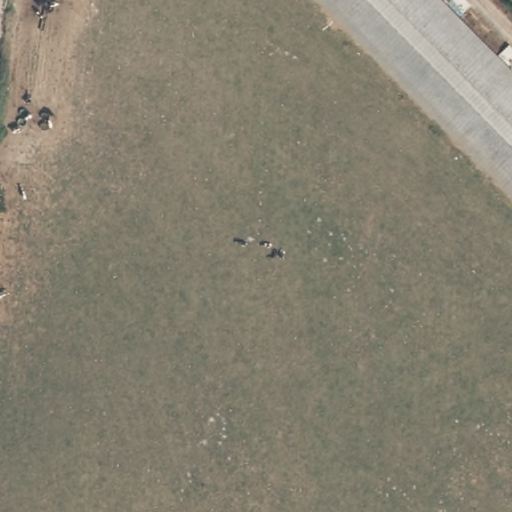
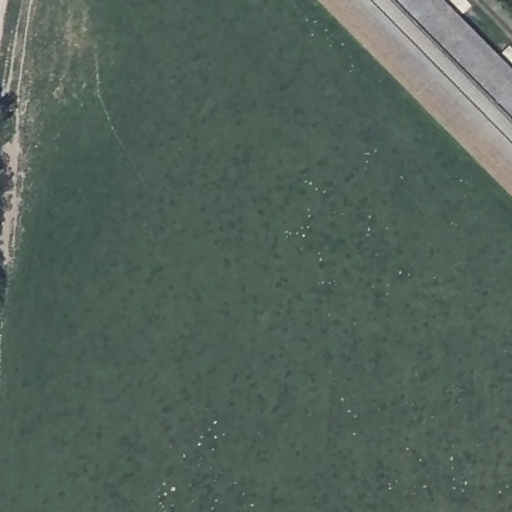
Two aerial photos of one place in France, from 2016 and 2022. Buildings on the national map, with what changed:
unchanged [(448,0),(512,63),(512,182),(328,0),(448,0)]

